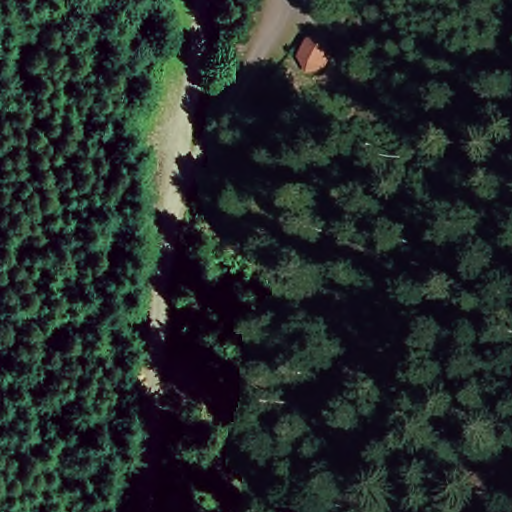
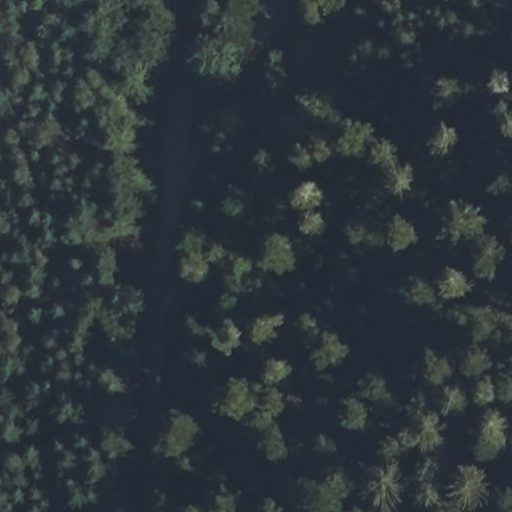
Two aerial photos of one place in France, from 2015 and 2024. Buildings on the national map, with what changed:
unchanged [(300,70),(292,55),(302,36),(322,30),(327,46),(319,66),(300,70)]

